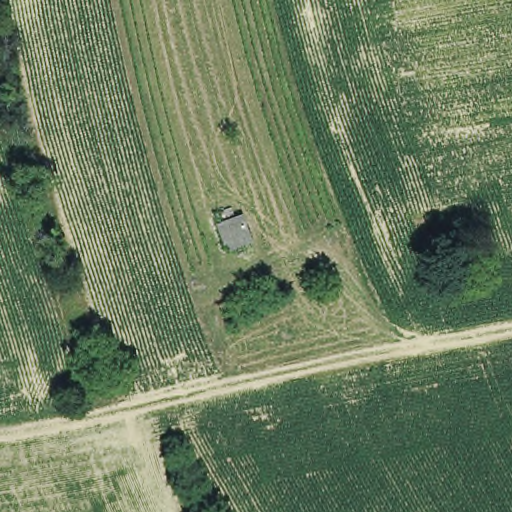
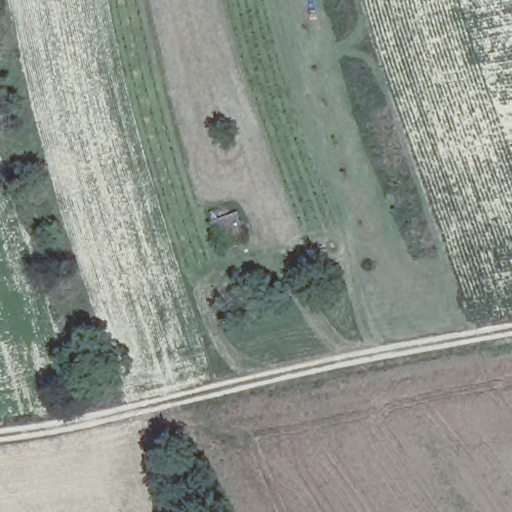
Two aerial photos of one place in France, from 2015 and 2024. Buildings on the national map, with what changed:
unchanged [(254,246),(225,260),(210,222),(240,214),(254,246)]

